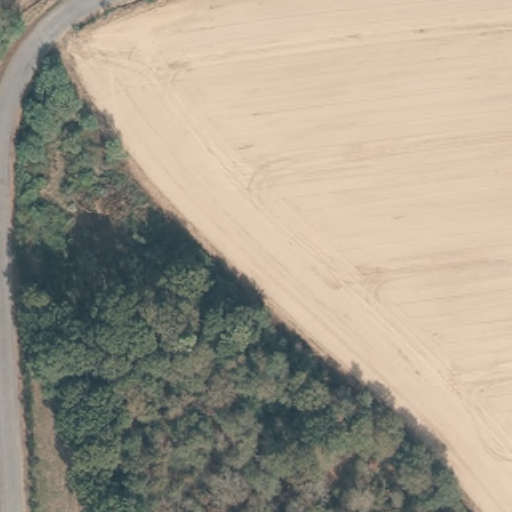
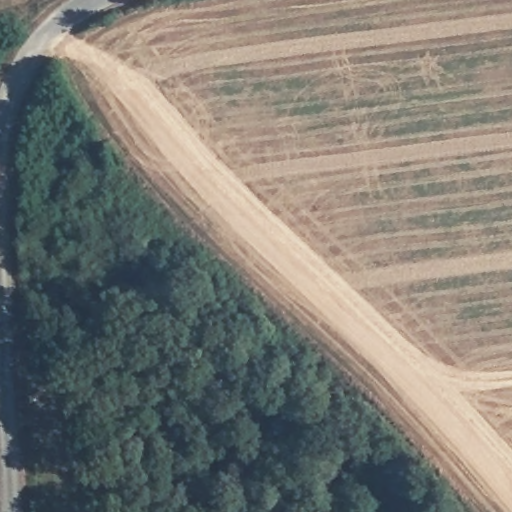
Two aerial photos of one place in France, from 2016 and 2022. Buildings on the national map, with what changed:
[]

